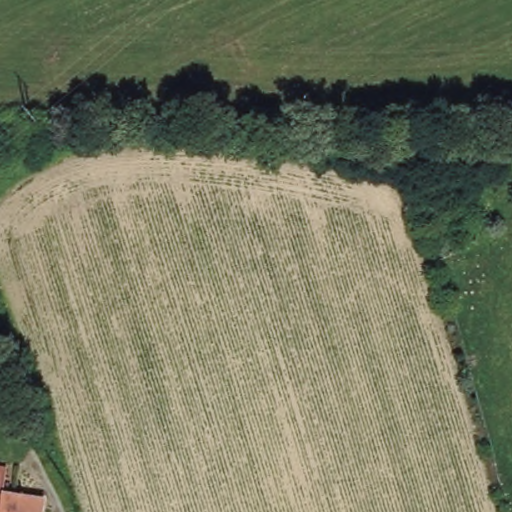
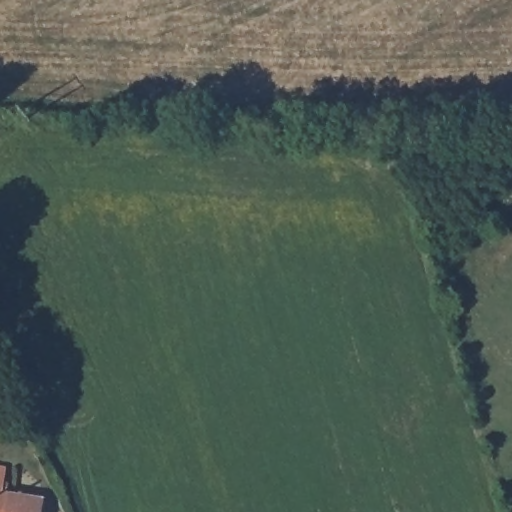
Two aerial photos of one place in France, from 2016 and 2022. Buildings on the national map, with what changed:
unchanged [(5,467),(2,489),(41,495),(39,512),(0,512),(0,466),(5,467)]

